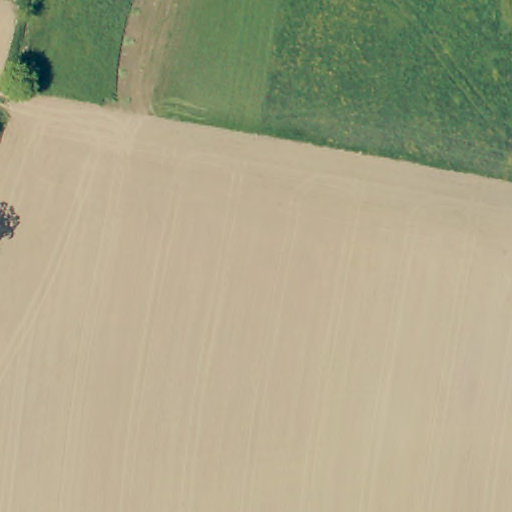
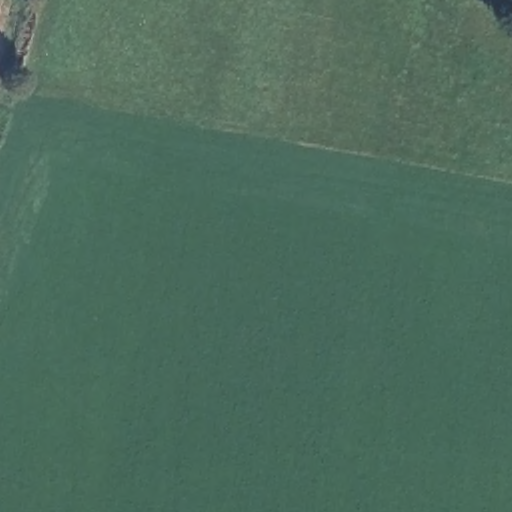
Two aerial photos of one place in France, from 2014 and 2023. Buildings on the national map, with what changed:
[]

